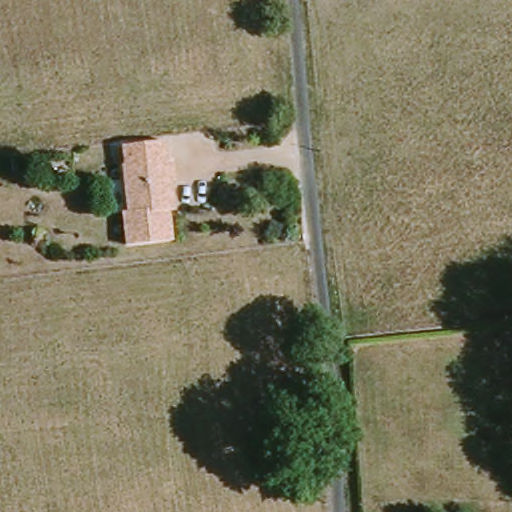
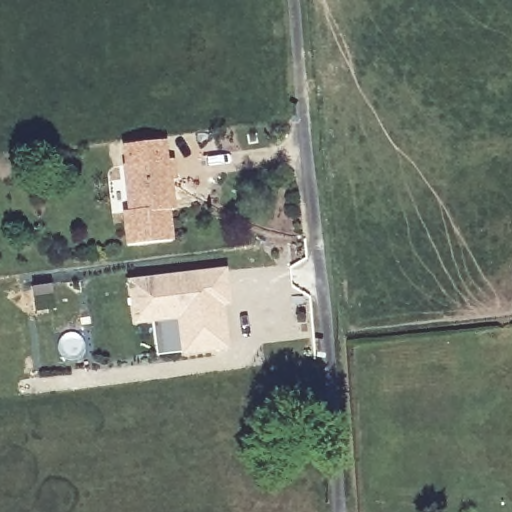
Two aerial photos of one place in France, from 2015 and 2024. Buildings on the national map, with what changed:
unchanged [(172,243),(127,249),(123,215),(128,215),(123,169),(122,145),(161,140),(171,162),(173,182),(169,183),(171,199),(173,212),(168,212),(172,243)]
new [(228,304),(222,305),(223,318),(227,348),(184,354),(180,317),(135,323),(130,283),(225,271),(228,304)]

